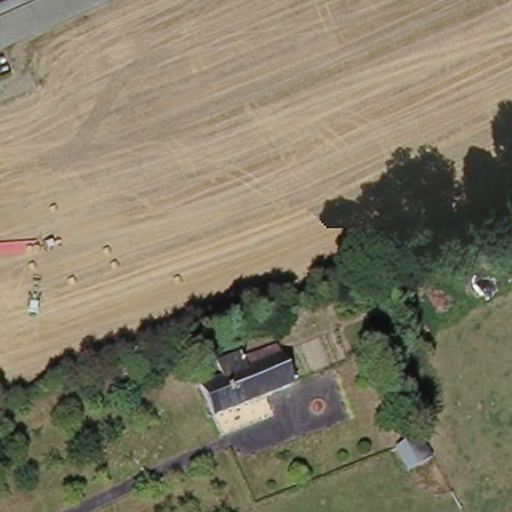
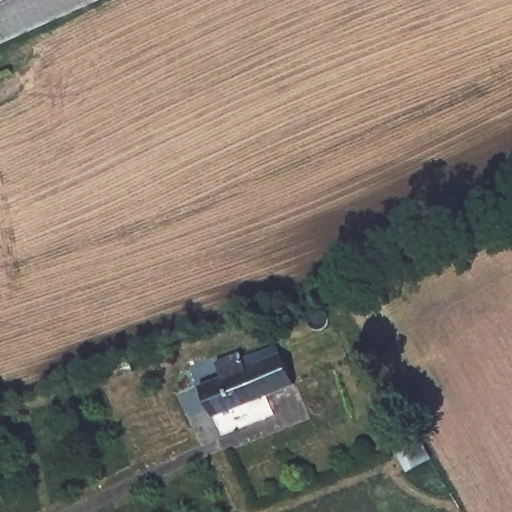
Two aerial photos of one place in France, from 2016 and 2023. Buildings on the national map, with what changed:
unchanged [(0,46),(0,0),(102,0),(7,43),(0,46)]
unchanged [(222,373),(217,357),(241,347),(248,362),(282,350),(295,380),(214,412),(201,380),(222,373)]
unchanged [(129,362),(133,373),(115,378),(112,366),(129,362)]
unchanged [(432,458),(407,473),(396,451),(418,437),(432,458)]

